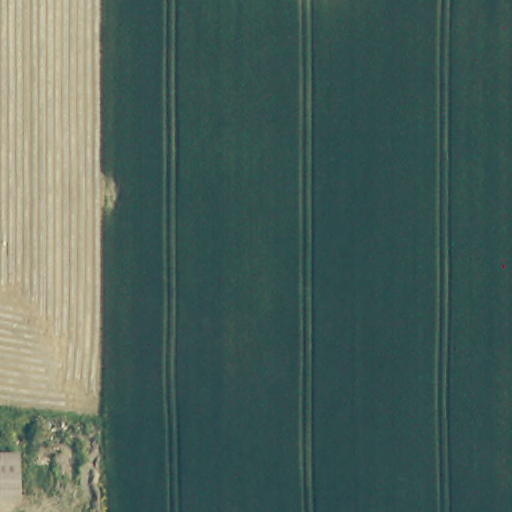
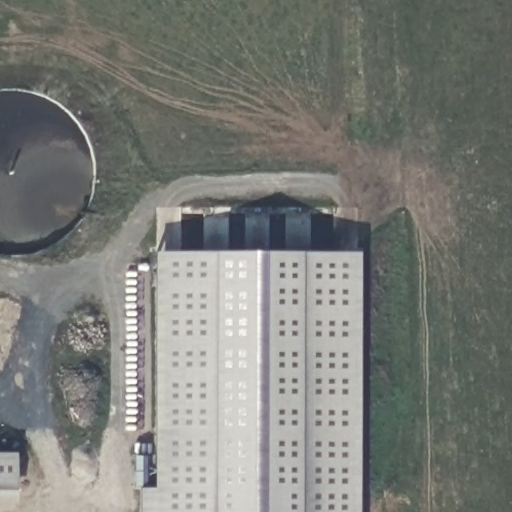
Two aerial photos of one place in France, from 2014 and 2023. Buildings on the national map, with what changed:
new [(139,512),(139,488),(154,487),(155,253),(360,254),(359,512),(139,512)]
unchanged [(22,493),(0,493),(0,456),(21,456),(22,493)]

